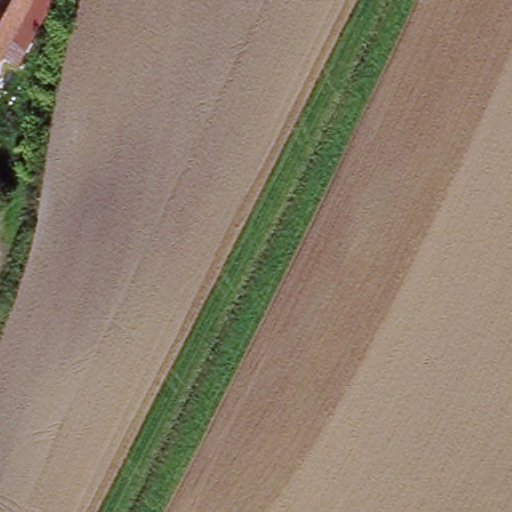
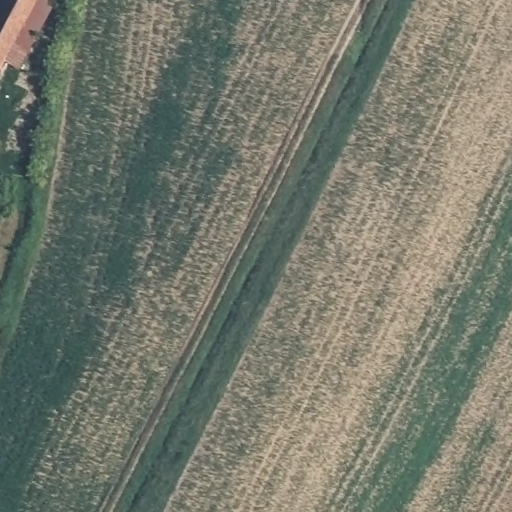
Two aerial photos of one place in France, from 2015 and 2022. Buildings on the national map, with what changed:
unchanged [(0,72),(0,9),(5,0),(38,0),(0,72)]

